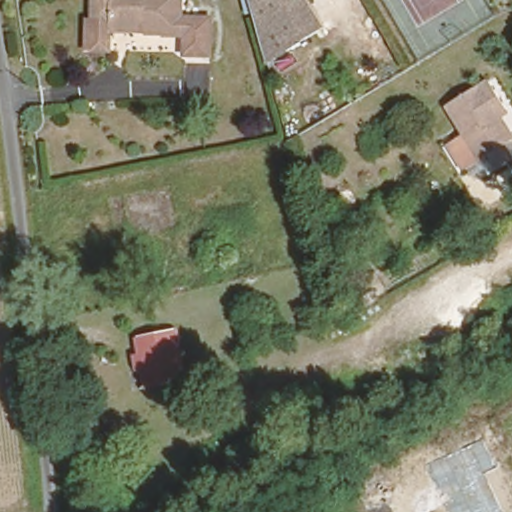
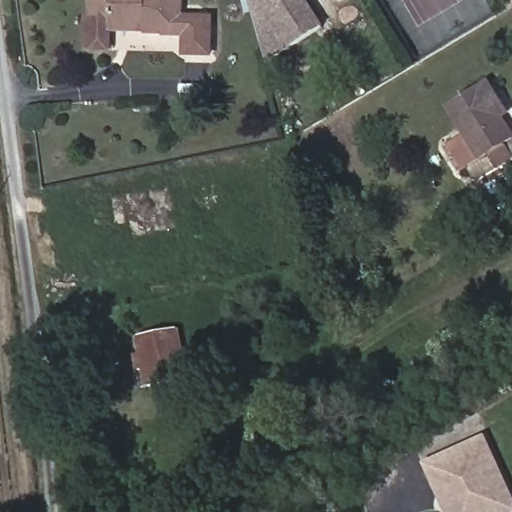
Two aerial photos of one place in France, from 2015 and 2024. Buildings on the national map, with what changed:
unchanged [(81,57),(81,25),(87,25),(89,0),(188,0),(188,23),(218,23),(217,57),(217,61),(199,61),(193,61),(193,41),(153,39),(153,30),(126,29),(126,34),(103,35),(103,57),(81,57)]
unchanged [(259,31),(250,0),(309,0),(325,27),(268,65),(259,31)]
unchanged [(489,156),(482,161),(461,174),(444,147),(466,135),(450,109),(480,88),(484,91),(492,86),(506,107),(511,115),(501,121),(512,137),(512,143),(507,146),(512,157),(512,160),(496,169),(489,156)]
unchanged [(139,353),(147,351),(144,336),(182,328),(193,377),(154,386),(148,387),(139,353)]
new [(445,512),(424,463),(486,435),(512,493),(512,512),(445,512)]

